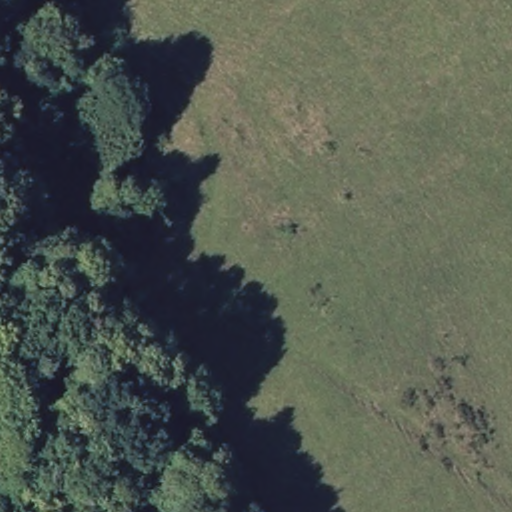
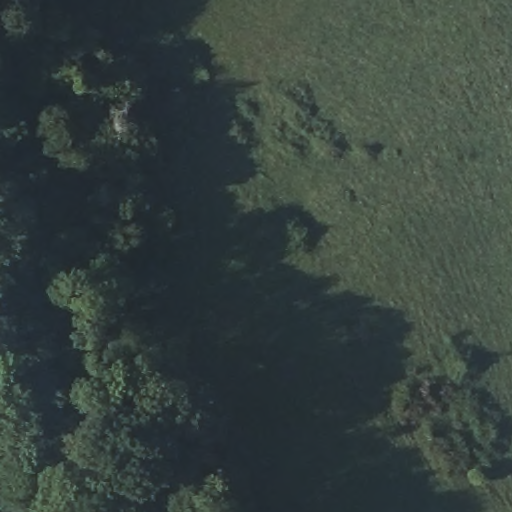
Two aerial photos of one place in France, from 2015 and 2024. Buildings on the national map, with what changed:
[]

